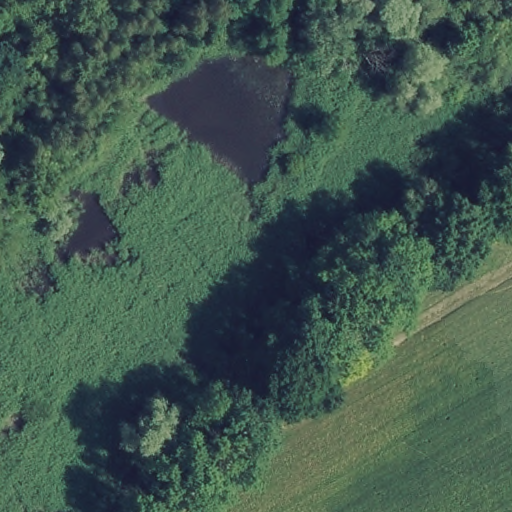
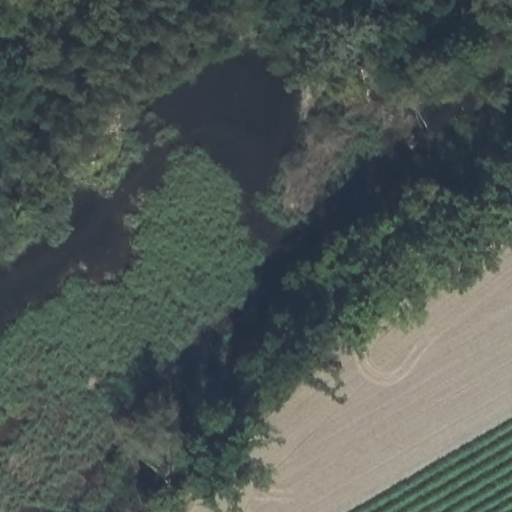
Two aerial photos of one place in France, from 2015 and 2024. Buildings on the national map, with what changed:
[]

